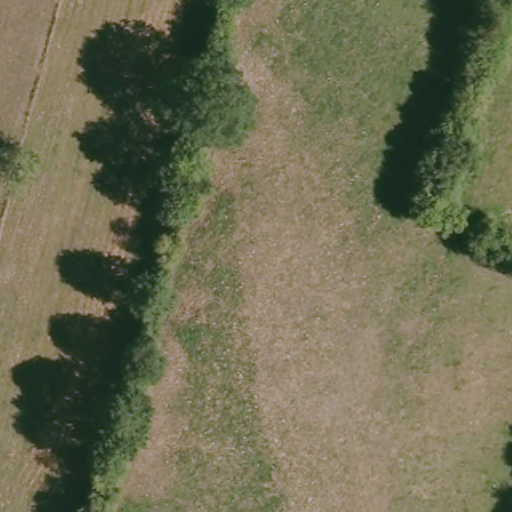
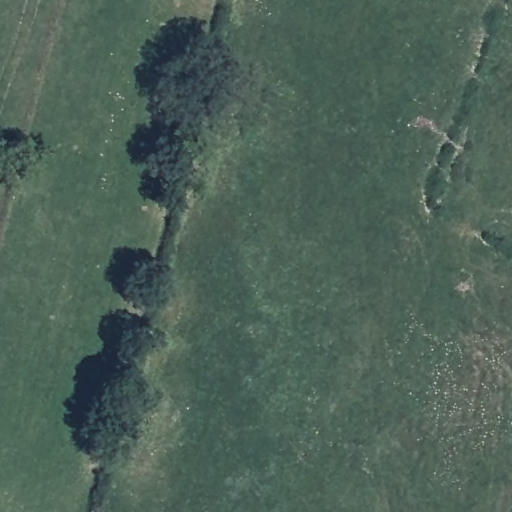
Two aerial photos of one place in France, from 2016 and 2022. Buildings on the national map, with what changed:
[]

